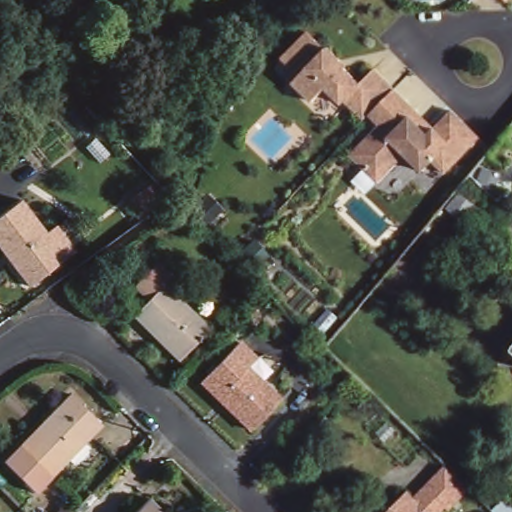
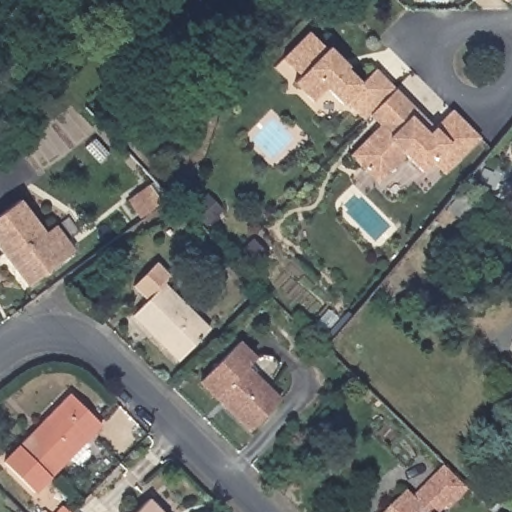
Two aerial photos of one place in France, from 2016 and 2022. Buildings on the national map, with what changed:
unchanged [(265,0),(274,0),(266,4),(265,0)]
unchanged [(508,0),(503,4),(500,0),(508,0)]
unchanged [(431,163),(420,176),(401,159),(377,186),(348,160),(376,130),(324,92),(310,106),(292,87),(326,47),(362,86),(375,72),(434,130),(452,113),(478,142),(446,175),(431,163)]
unchanged [(132,195),(148,187),(152,184),(160,197),(155,200),(140,208),(132,195)]
unchanged [(0,250),(0,215),(19,201),(45,234),(55,226),(74,249),(64,257),(27,285),(0,250)]
unchanged [(480,247),(468,262),(457,255),(469,239),(480,247)]
unchanged [(145,299),(132,286),(154,262),(168,277),(161,284),(207,328),(177,358),(131,314),(145,299)]
unchanged [(235,341),(252,357),(244,365),(277,398),(247,428),(197,378),(235,341)]
unchanged [(512,348),(512,359),(506,353),(512,348)]
unchanged [(100,424),(35,492),(5,462),(70,394),(100,424)]
unchanged [(406,492),(427,512),(385,512),(406,492)]
unchanged [(150,497),(165,512),(135,512),(150,497)]
unchanged [(65,506),(74,512),(60,512),(65,506)]

